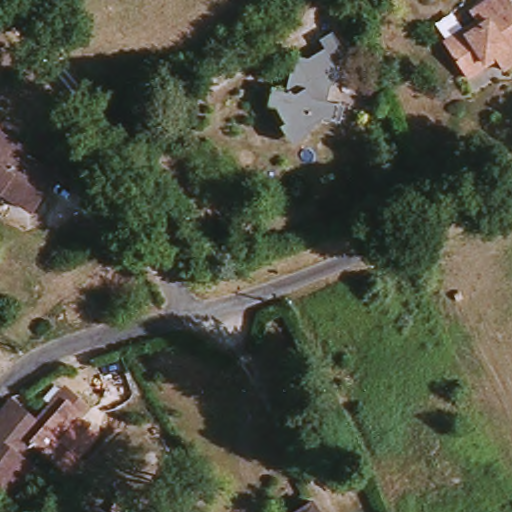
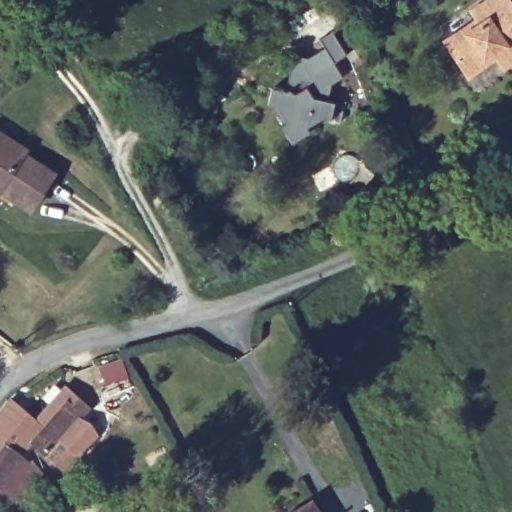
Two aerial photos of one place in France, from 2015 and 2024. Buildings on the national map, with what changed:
unchanged [(449,38),(483,17),(477,7),(489,0),(512,0),(512,63),(507,66),(501,56),(488,64),(471,74),(449,38)]
unchanged [(283,127),(287,125),(277,108),(270,107),(272,95),(287,97),(293,56),(307,58),(324,48),(319,40),(332,32),(346,56),(333,63),(342,78),(331,85),(328,103),(345,106),(343,123),(325,121),(310,130),(312,134),(294,145),(283,127)]
unchanged [(175,93),(162,101),(152,84),(164,76),(175,93)]
unchanged [(21,202),(16,210),(0,199),(0,130),(30,150),(26,156),(56,176),(34,211),(21,202)]
unchanged [(76,392),(91,407),(86,412),(62,439),(81,455),(70,467),(35,436),(13,461),(0,451),(0,414),(14,396),(41,419),(71,387),(76,392)]
unchanged [(30,477),(1,512),(0,512),(0,451),(13,461),(30,477)]
unchanged [(315,498),(323,512),(293,512),(315,498)]

